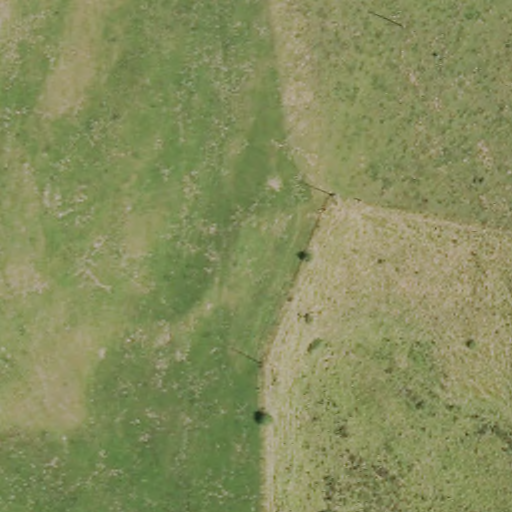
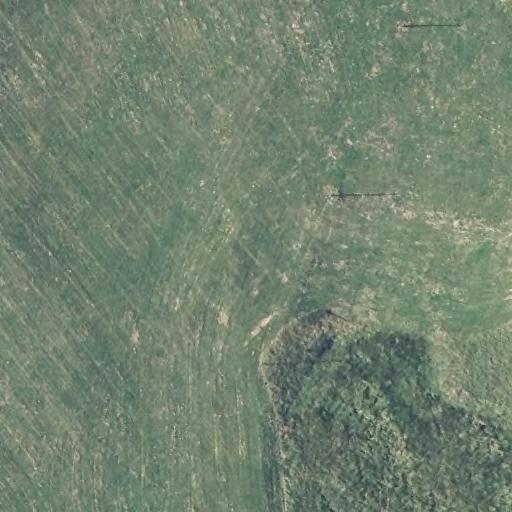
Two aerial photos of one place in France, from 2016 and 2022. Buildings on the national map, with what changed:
[]

